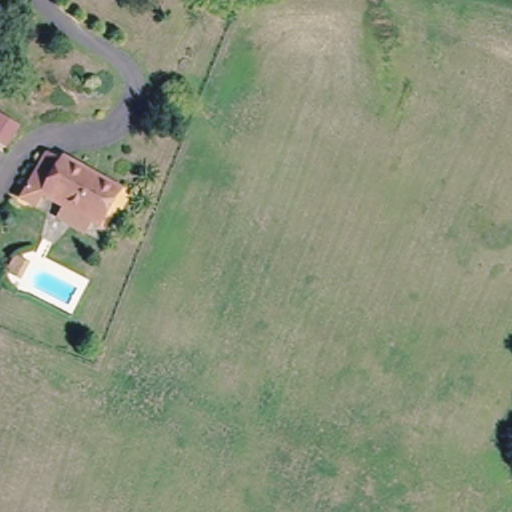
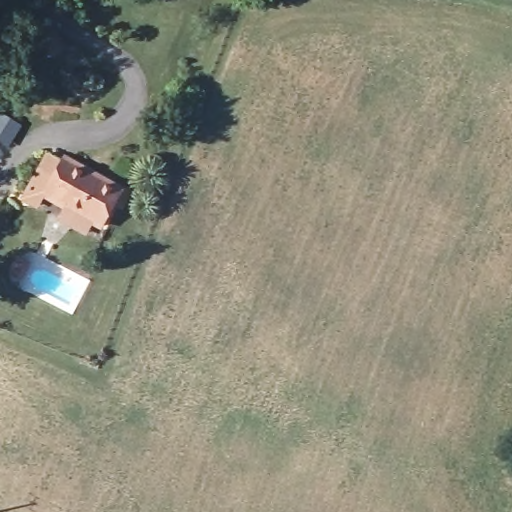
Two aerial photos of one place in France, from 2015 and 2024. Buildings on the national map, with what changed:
unchanged [(48,199),(40,209),(25,200),(51,155),(67,166),(48,199)]
unchanged [(61,221),(65,212),(48,199),(67,166),(68,164),(123,195),(102,230),(95,227),(89,237),(61,221)]

